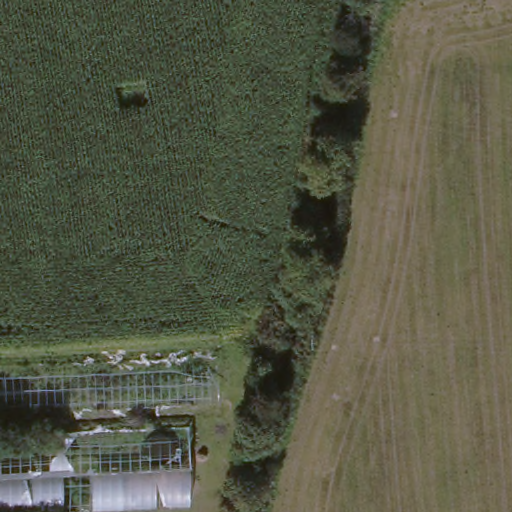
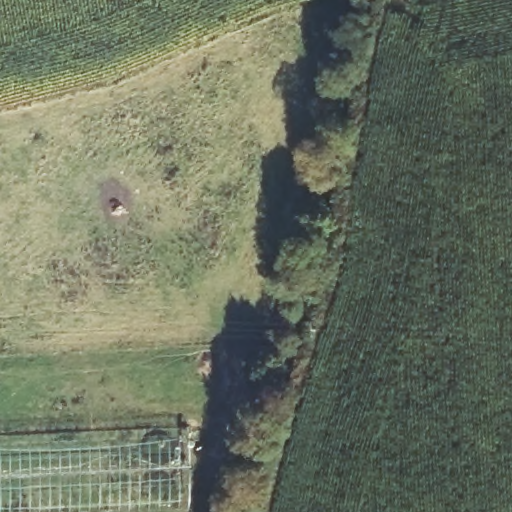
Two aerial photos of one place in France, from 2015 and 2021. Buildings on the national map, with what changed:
unchanged [(0,369),(231,360),(235,409),(192,415),(197,505),(164,511),(164,512),(0,512),(0,369)]

